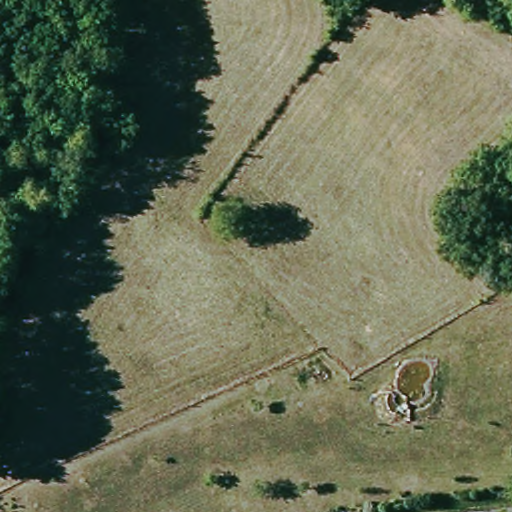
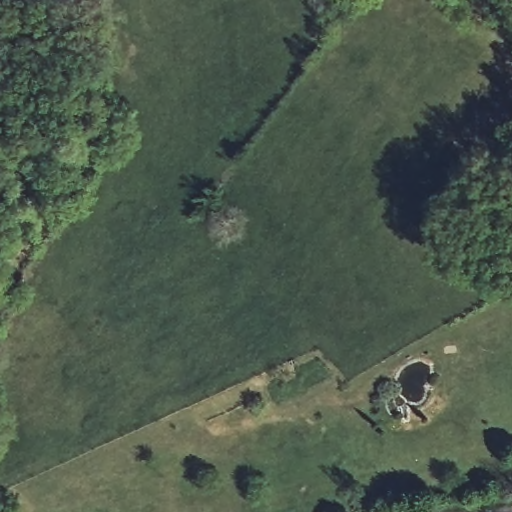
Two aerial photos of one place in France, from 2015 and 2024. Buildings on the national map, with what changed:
[]

